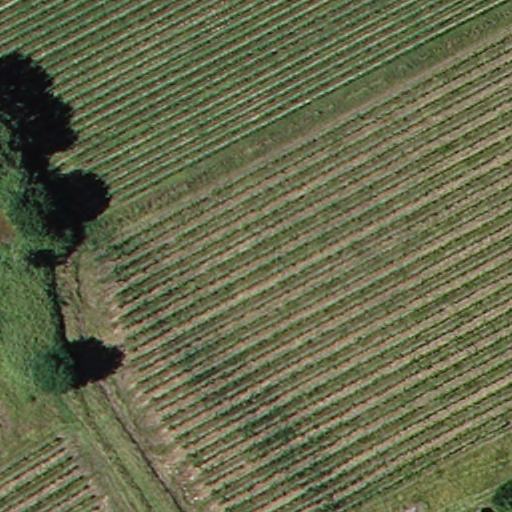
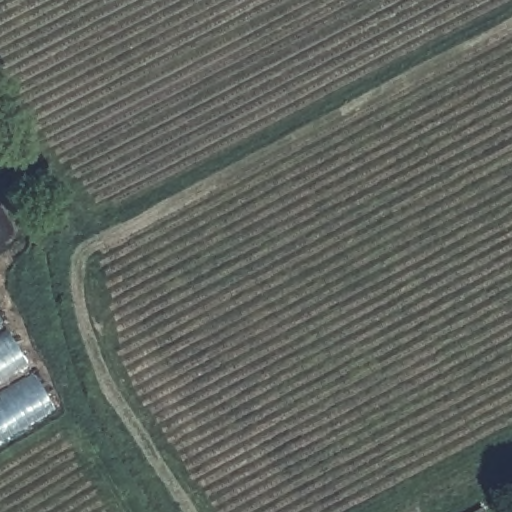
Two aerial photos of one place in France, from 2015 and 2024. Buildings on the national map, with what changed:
new [(0,328),(0,322),(3,327),(0,328)]
new [(0,386),(0,338),(8,334),(28,369),(0,386)]
new [(32,377),(53,411),(0,443),(0,397),(32,377)]

